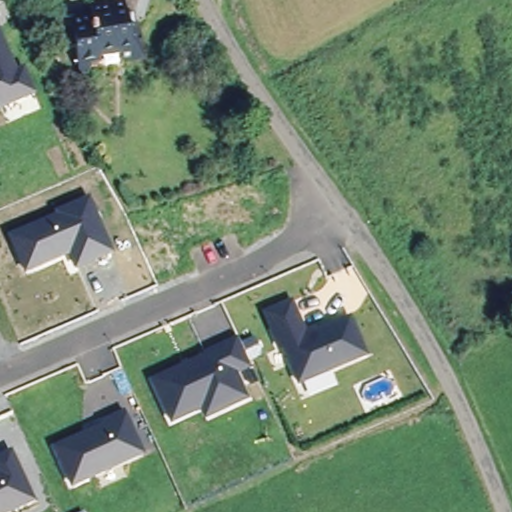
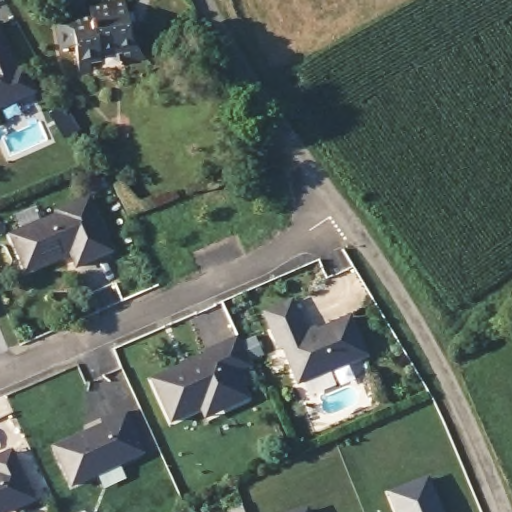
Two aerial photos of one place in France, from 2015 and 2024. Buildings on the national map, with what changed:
unchanged [(131,55),(121,57),(120,48),(99,51),(100,56),(86,57),(86,70),(79,71),(75,42),(59,45),(55,13),(89,7),(88,0),(123,0),(131,55)]
unchanged [(27,66),(37,90),(0,105),(0,23),(19,69),(27,66)]
unchanged [(55,217),(53,211),(90,197),(114,255),(76,270),(70,257),(25,274),(9,236),(55,217)]
unchanged [(351,313),(368,350),(302,380),(286,345),(282,346),(273,326),(266,311),(293,298),(300,314),(308,333),(351,313)]
unchanged [(202,407),(173,420),(154,379),(208,354),(207,352),(239,337),(249,358),(252,365),(236,372),(247,397),(230,405),(206,416),(202,407)]
unchanged [(86,429),(87,431),(106,422),(104,416),(125,407),(143,448),(74,480),(56,442),(86,429)]
unchanged [(0,510),(0,452),(12,447),(34,495),(0,510)]
new [(395,512),(387,491),(428,475),(443,512),(395,512)]
new [(309,512),(293,512),(307,507),(309,512)]

